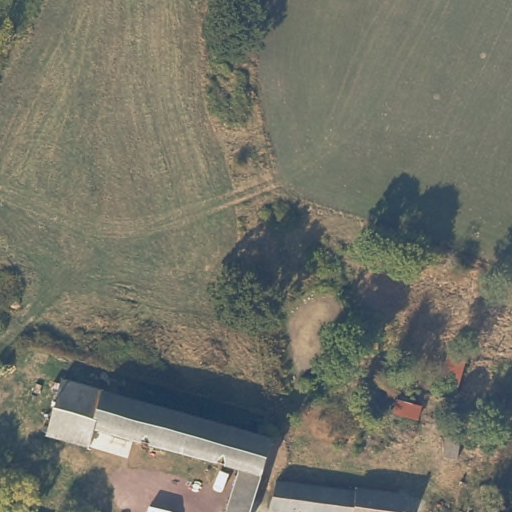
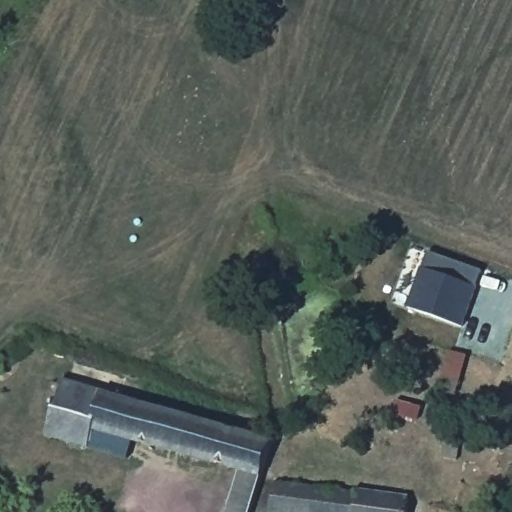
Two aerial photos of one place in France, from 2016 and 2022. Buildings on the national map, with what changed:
new [(478,287),(463,327),(408,308),(423,268),(429,251),(482,270),(478,287)]
unchanged [(458,399),(438,393),(449,346),(471,352),(458,399)]
unchanged [(274,436),(247,512),(223,512),(237,467),(94,425),(89,443),(44,430),(60,374),(274,436)]
unchanged [(424,406),(419,423),(391,414),(395,399),(424,406)]
unchanged [(403,494),(402,512),(283,512),(268,510),(272,482),(293,485),(314,487),(332,489),(353,490),(354,487),(403,494)]

